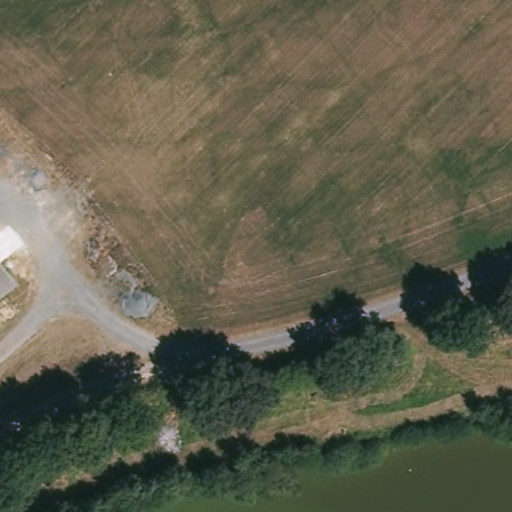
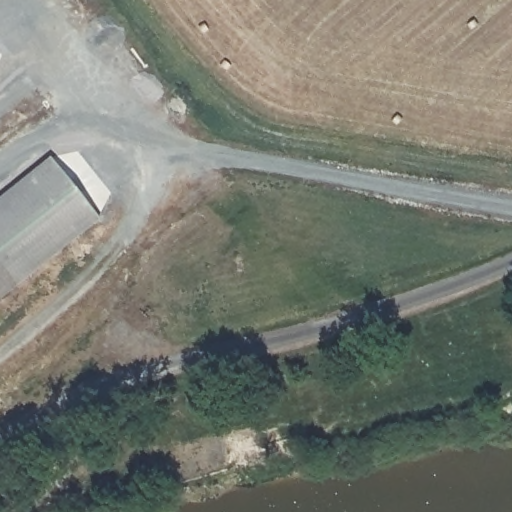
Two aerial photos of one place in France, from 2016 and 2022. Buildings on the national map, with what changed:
new [(49,157),(99,219),(16,285),(0,267),(0,196),(49,157)]
unchanged [(16,285),(0,298),(0,267),(16,285)]

